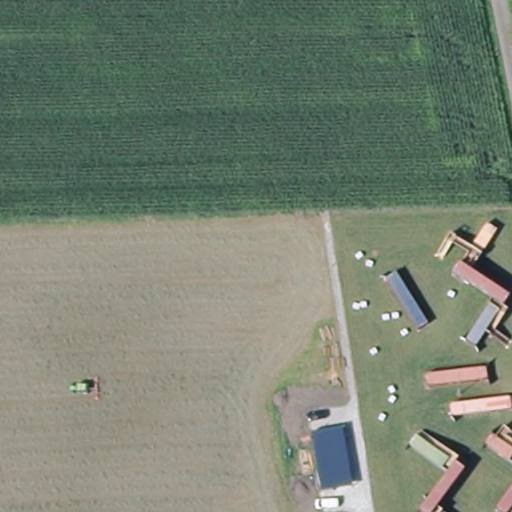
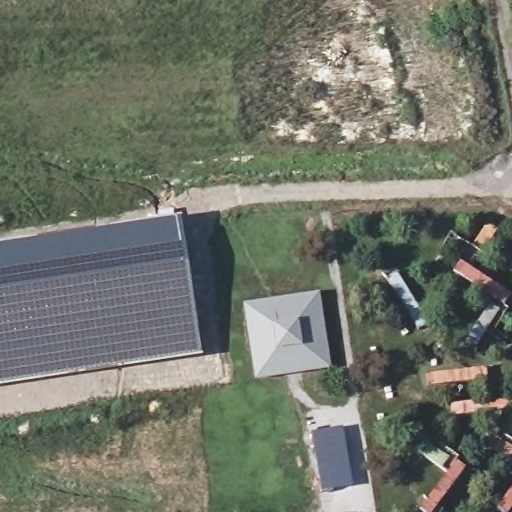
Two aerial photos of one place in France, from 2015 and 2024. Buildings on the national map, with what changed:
new [(187,264),(201,355),(70,375),(0,387),(0,247),(178,217),(187,264)]
new [(506,310),(503,316),(498,313),(480,342),(470,335),(491,301),(452,275),(459,264),(509,297),(502,308),(506,310)]
new [(312,290),(324,359),(255,370),(244,301),(312,290)]
unchanged [(343,429),(353,486),(320,492),(311,434),(343,429)]
new [(484,445),(492,433),(512,449),(512,465),(484,445)]
new [(423,512),(445,471),(418,457),(425,446),(462,466),(438,512),(423,512)]
new [(497,512),(496,511),(512,489),(512,512),(497,512)]

